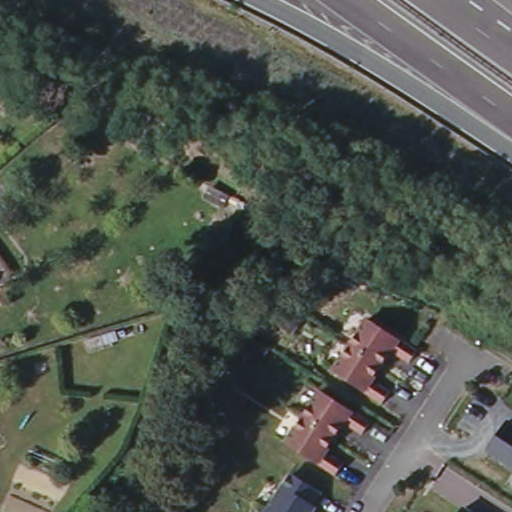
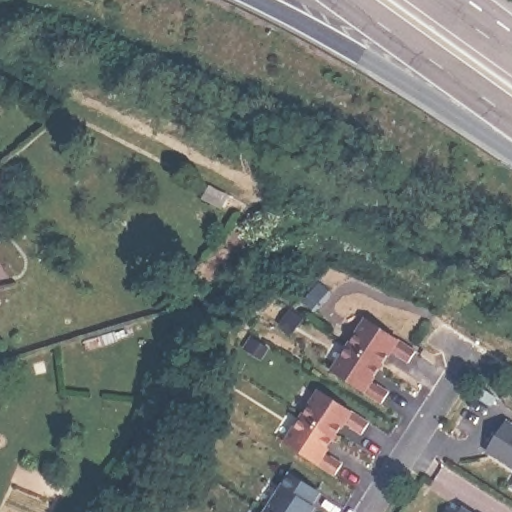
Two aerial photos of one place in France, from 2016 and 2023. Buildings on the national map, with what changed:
unchanged [(359,322),(412,351),(405,362),(390,352),(373,380),(386,389),(378,403),(327,368),(359,322)]
unchanged [(282,452),(315,393),(364,420),(352,437),(340,428),(325,457),(337,463),(328,477),(282,452)]
unchanged [(507,420),(512,422),(512,469),(487,453),(507,420)]
unchanged [(307,512),(263,512),(287,475),(317,496),(307,512)]
unchanged [(464,507),(472,512),(461,512),(464,507)]

